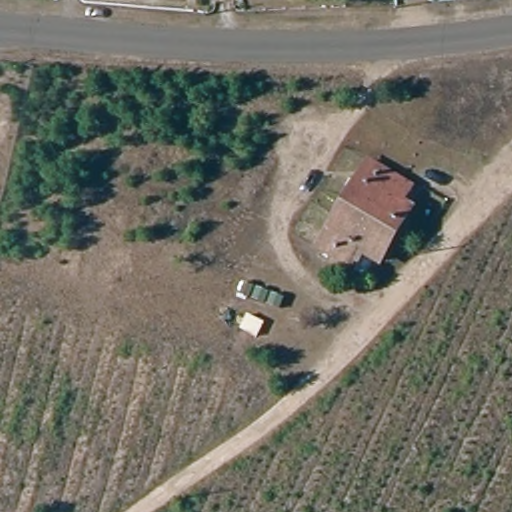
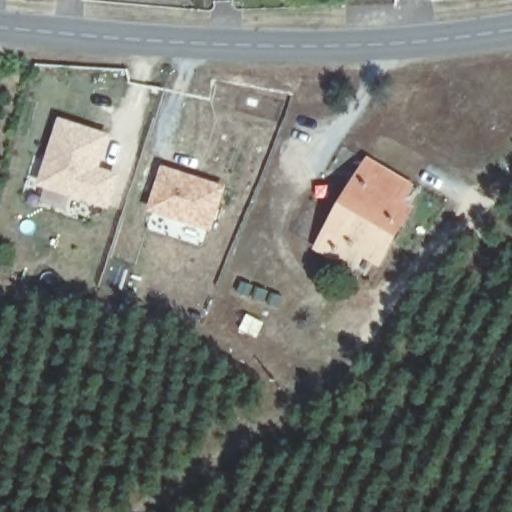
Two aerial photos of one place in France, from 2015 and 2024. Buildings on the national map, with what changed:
new [(105,137),(99,158),(95,171),(115,178),(106,207),(40,186),(60,123),(105,137)]
new [(160,164),(226,185),(211,231),(147,211),(160,164)]
unchanged [(341,269),(315,253),(363,169),(405,192),(396,209),(404,214),(375,264),(358,254),(348,272),(341,269)]
unchanged [(266,320),(257,313),(235,296),(251,275),(273,292),(283,299),(266,320)]

